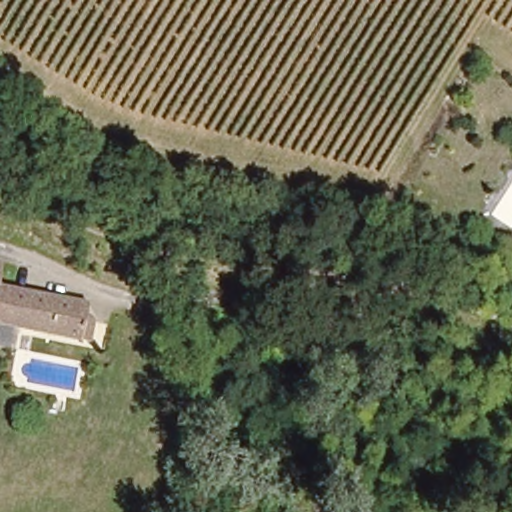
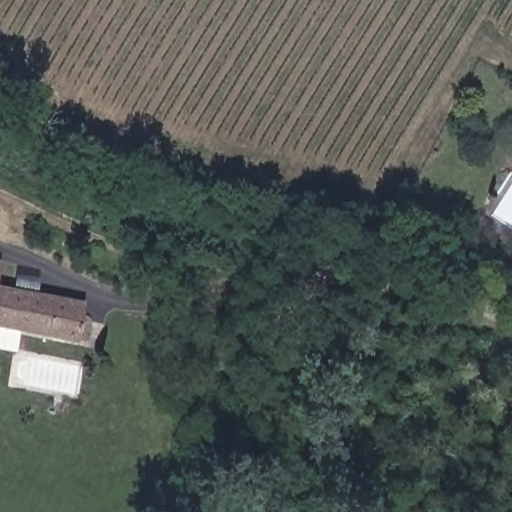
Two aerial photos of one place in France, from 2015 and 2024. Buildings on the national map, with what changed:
unchanged [(0,271),(0,267),(1,267),(0,271)]
unchanged [(84,323),(91,325),(89,344),(0,326),(0,290),(86,307),(84,323)]

